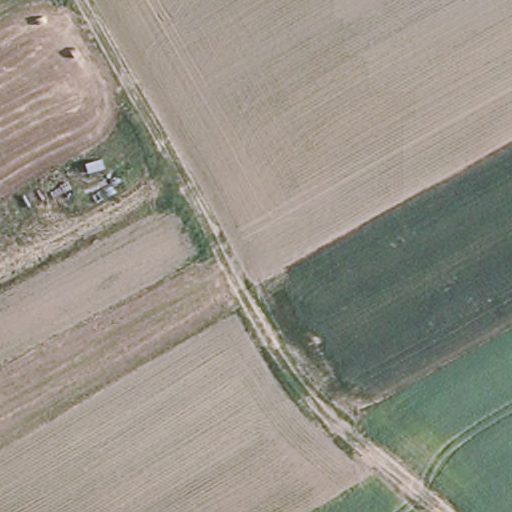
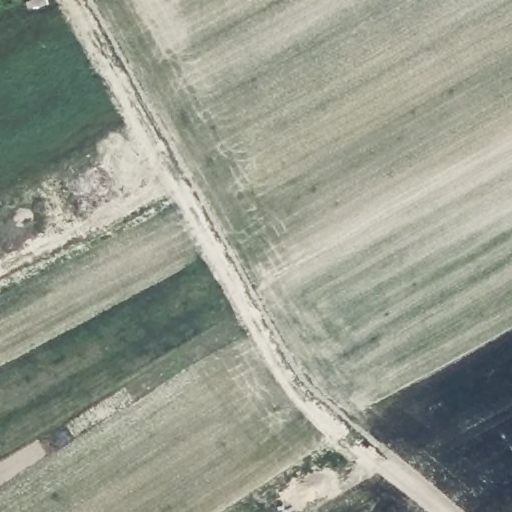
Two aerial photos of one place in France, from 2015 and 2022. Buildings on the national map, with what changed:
[]

